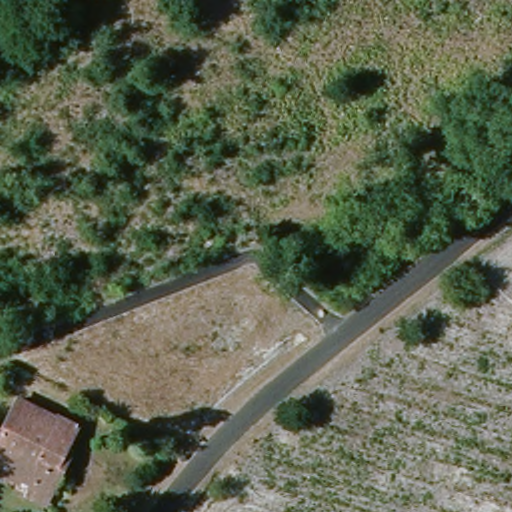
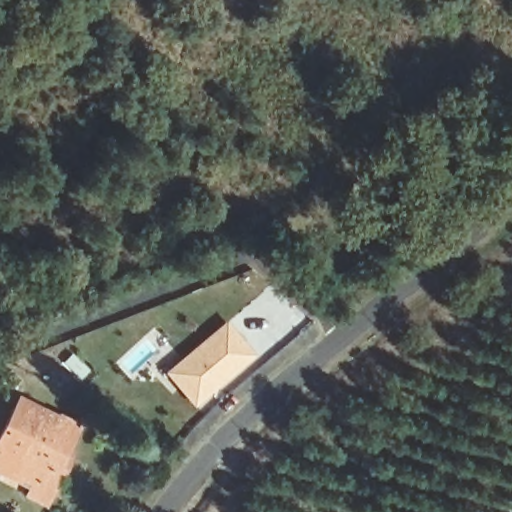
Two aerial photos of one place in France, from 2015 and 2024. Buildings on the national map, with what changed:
new [(165,372),(226,321),(256,354),(194,406),(165,372)]
unchanged [(60,425),(73,432),(59,457),(65,461),(46,492),(37,487),(34,493),(0,475),(0,446),(20,410),(57,430),(60,425)]

